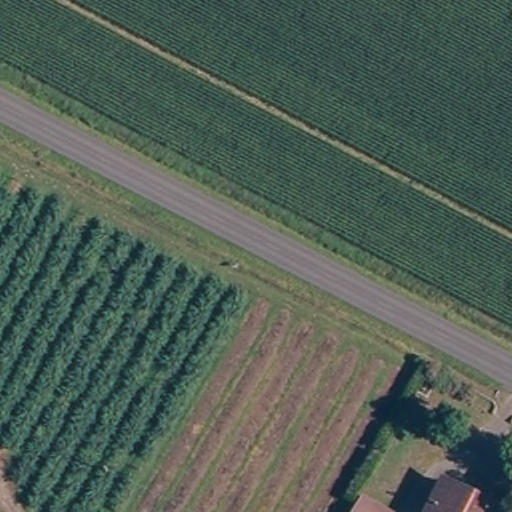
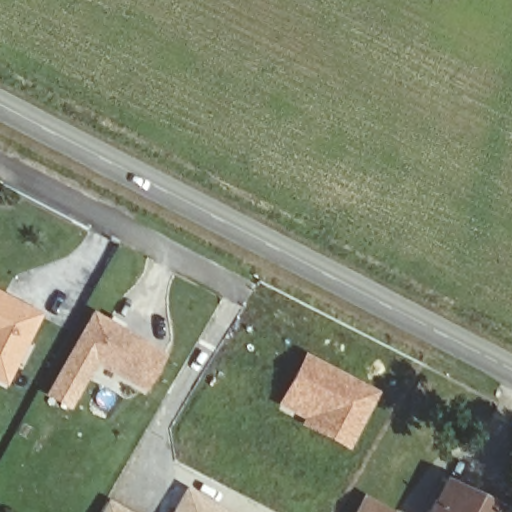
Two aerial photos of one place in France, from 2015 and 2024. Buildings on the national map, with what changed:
new [(7,387),(0,384),(0,293),(44,314),(7,387)]
new [(92,310),(165,352),(145,394),(96,366),(68,410),(42,395),(92,310)]
new [(372,393),(346,446),(312,430),(322,414),(286,395),(306,360),(372,393)]
new [(172,512),(187,487),(229,512),(172,512)]
unchanged [(430,512),(442,488),(490,512),(430,512)]
new [(101,512),(109,501),(128,512),(101,512)]
unchanged [(375,512),(355,512),(360,503),(375,512)]

